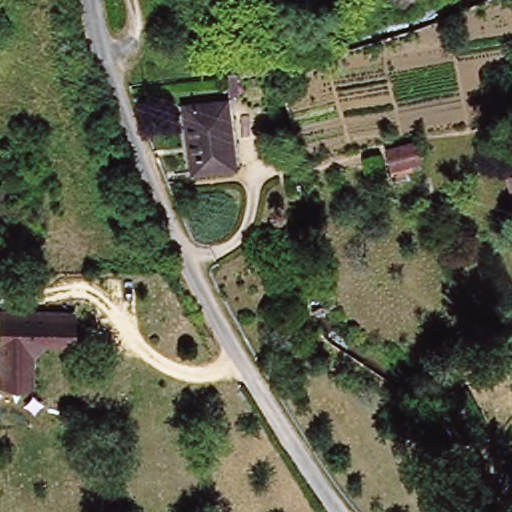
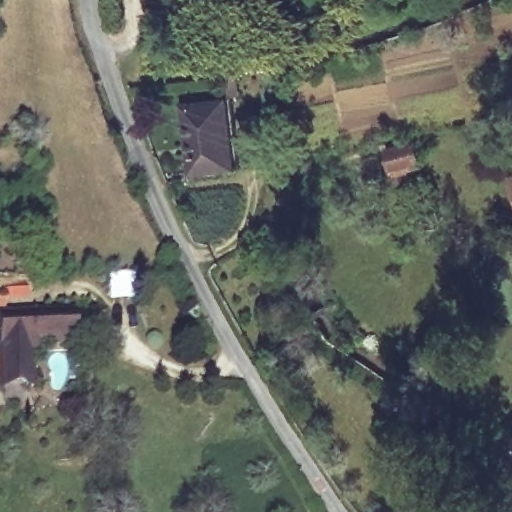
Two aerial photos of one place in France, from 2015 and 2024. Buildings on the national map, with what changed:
unchanged [(191,103),(236,97),(245,168),(200,174),(191,103)]
unchanged [(384,151),(414,142),(419,161),(409,164),(412,170),(392,176),(391,170),(384,151)]
unchanged [(48,340),(35,353),(35,381),(1,380),(3,307),(77,308),(76,341),(48,340)]

